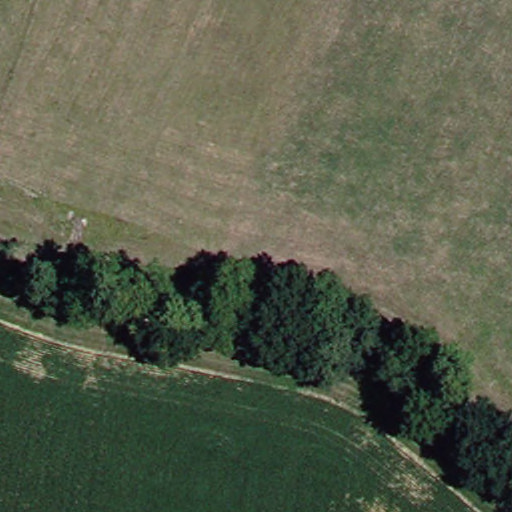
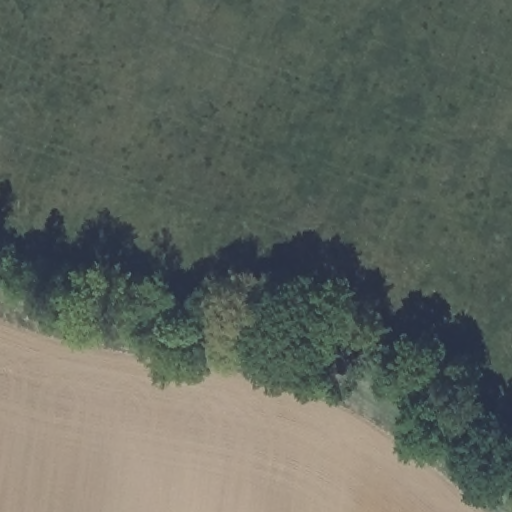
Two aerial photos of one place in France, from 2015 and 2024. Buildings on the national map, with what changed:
[]

